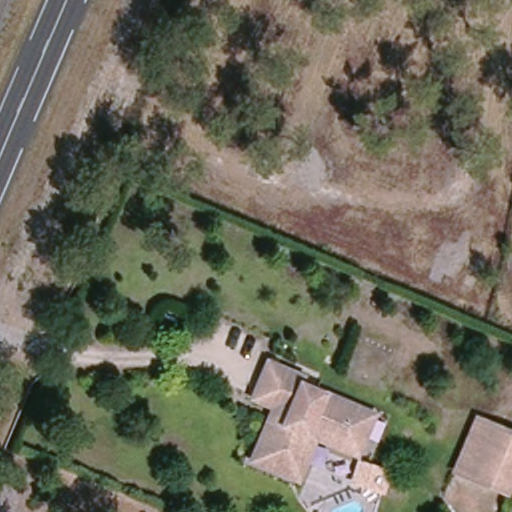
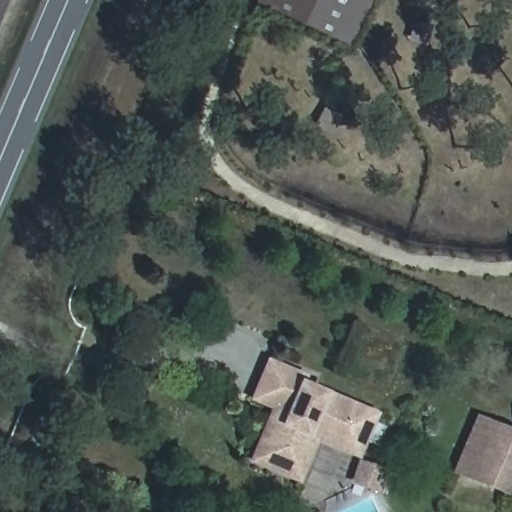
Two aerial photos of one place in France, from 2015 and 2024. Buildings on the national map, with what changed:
new [(347,49),(253,3),(254,0),(371,0),(347,49)]
unchanged [(271,408),(247,398),(267,354),(307,372),(305,377),(383,412),(363,460),(321,441),(301,486),(247,463),(271,408)]
unchanged [(475,415),(490,422),(467,477),(451,470),(475,415)]
unchanged [(512,481),(506,494),(467,477),(490,422),(512,431),(512,481)]

